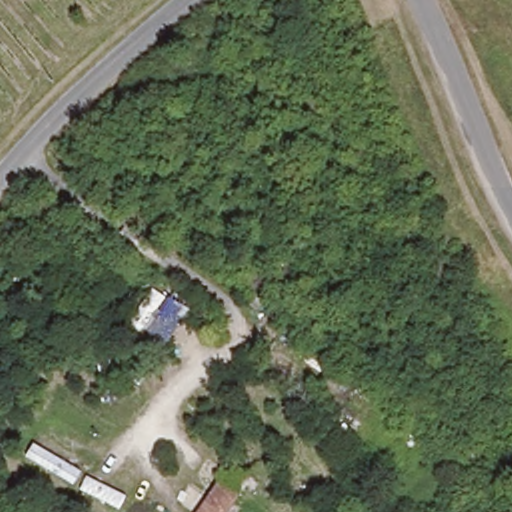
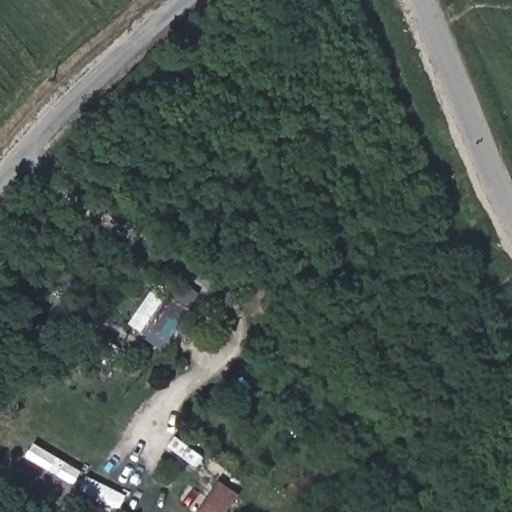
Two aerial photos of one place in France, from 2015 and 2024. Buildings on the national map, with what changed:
unchanged [(120,512),(118,512),(74,487),(83,473),(129,494),(120,512)]
unchanged [(228,512),(197,512),(220,479),(240,495),(228,512)]

